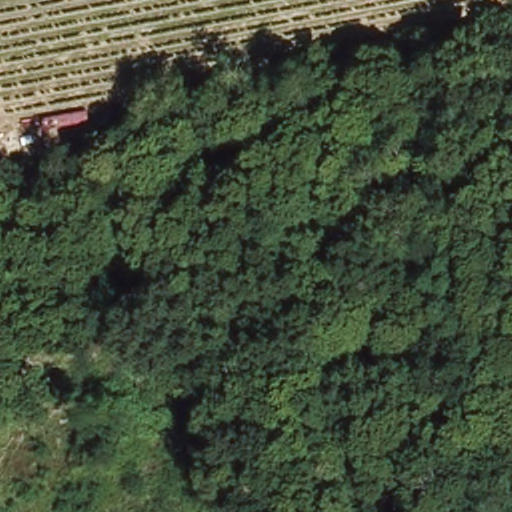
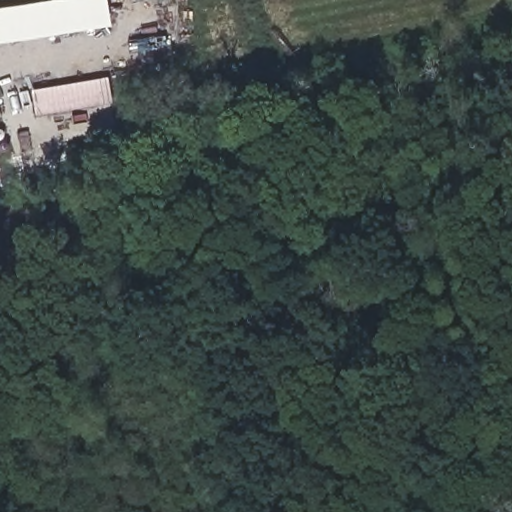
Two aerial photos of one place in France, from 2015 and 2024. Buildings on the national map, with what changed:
new [(48,0),(107,0),(109,25),(0,43),(0,7),(48,0)]
new [(111,101),(34,116),(30,90),(107,76),(111,101)]

